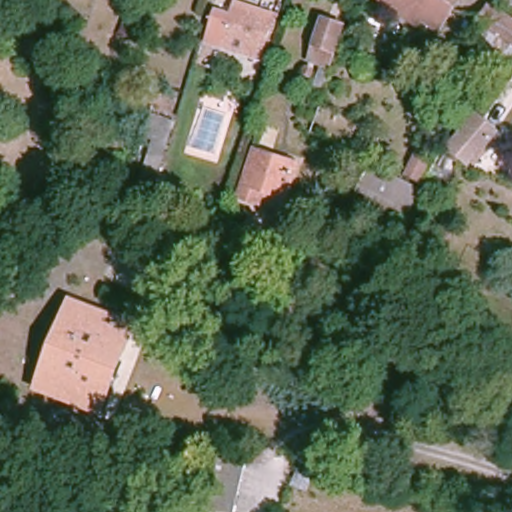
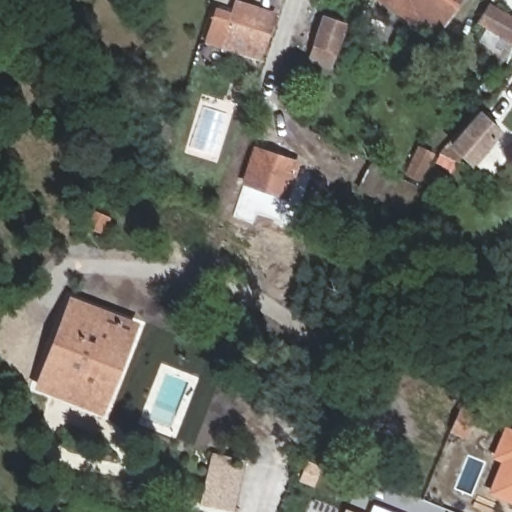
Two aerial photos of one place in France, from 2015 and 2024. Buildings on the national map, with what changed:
unchanged [(415,14),(411,19),(399,10),(385,0),(462,0),(440,31),(415,14)]
unchanged [(488,29),(480,24),(491,5),(512,17),(512,61),(480,44),(488,29)]
unchanged [(234,9),(273,21),(260,60),(220,47),(234,9)]
unchanged [(340,30),(325,71),(306,66),(320,24),(340,30)]
unchanged [(159,174),(142,171),(149,143),(141,140),(148,115),(176,119),(159,174)]
unchanged [(500,132),(473,164),(452,145),(481,115),(500,132)]
unchanged [(406,175),(420,147),(433,155),(420,181),(406,175)]
unchanged [(282,210),(240,196),(255,150),(298,165),(282,210)]
unchanged [(357,190),(370,164),(421,189),(408,216),(357,190)]
unchanged [(296,217),(288,245),(272,240),(280,212),(296,217)]
unchanged [(84,405),(39,387),(72,300),(135,325),(112,385),(102,412),(84,405)]
new [(492,455),(505,425),(512,429),(512,503),(488,493),(502,460),(492,455)]
unchanged [(247,461),(235,512),(230,512),(200,505),(212,453),(247,461)]
unchanged [(304,453),(321,460),(308,492),(291,485),(304,453)]

